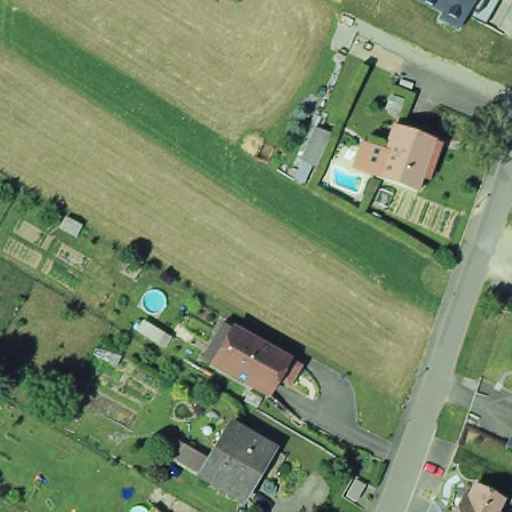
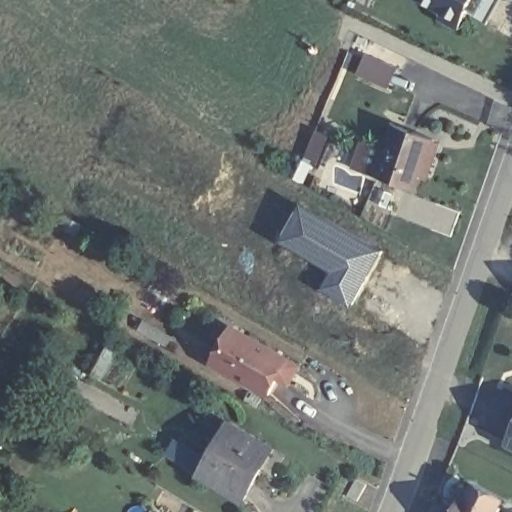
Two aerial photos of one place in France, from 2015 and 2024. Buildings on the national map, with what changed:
unchanged [(444,13),(424,0),(498,0),(486,21),(471,12),(462,29),(440,20),(444,13)]
unchanged [(439,139),(422,190),(413,187),(382,175),(400,125),(439,139)]
new [(317,128),(330,134),(304,184),(292,178),(317,128)]
new [(374,182),(397,191),(388,213),(375,210),(373,215),(380,218),(377,225),(360,216),(374,182)]
new [(300,202),(385,248),(350,309),(318,291),(330,272),(278,241),(300,202)]
unchanged [(299,385),(287,379),(278,394),(226,365),(212,357),(233,322),(247,329),(298,359),(310,366),(299,385)]
unchanged [(278,449),(249,500),(205,475),(172,455),(180,441),(214,461),(235,424),(278,449)]
unchanged [(509,443),(512,439),(512,438),(512,445),(509,443)]
unchanged [(347,496),(356,479),(366,485),(357,501),(347,496)]
unchanged [(456,503),(460,505),(467,492),(480,498),(495,506),(491,512),(451,512),(456,503)]

